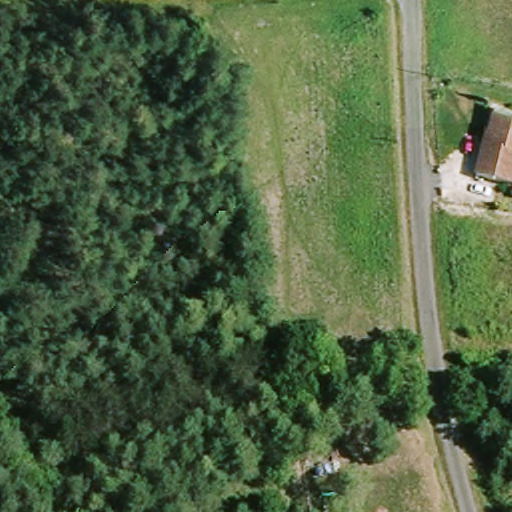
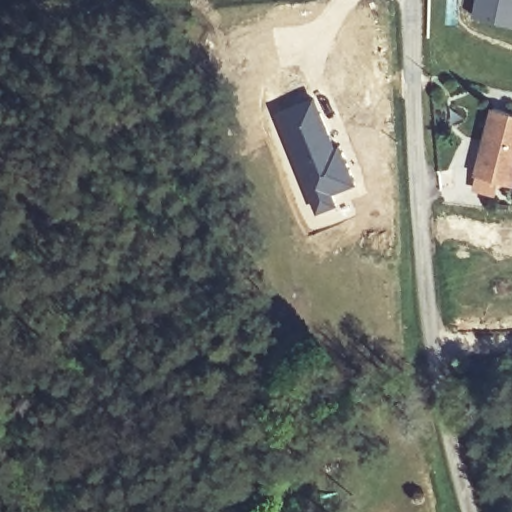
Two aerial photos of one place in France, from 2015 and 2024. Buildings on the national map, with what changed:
new [(474,17),(477,0),(512,0),(512,25),(474,17)]
new [(315,97),(331,133),(346,157),(358,187),(336,196),(339,204),(316,214),(271,115),(315,97)]
unchanged [(512,112),(512,184),(486,179),(500,110),(512,112)]

